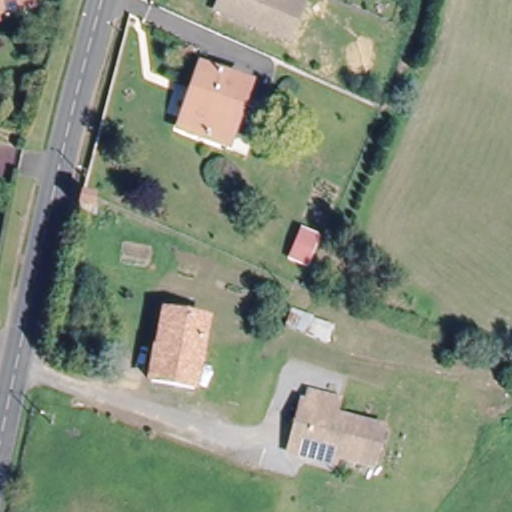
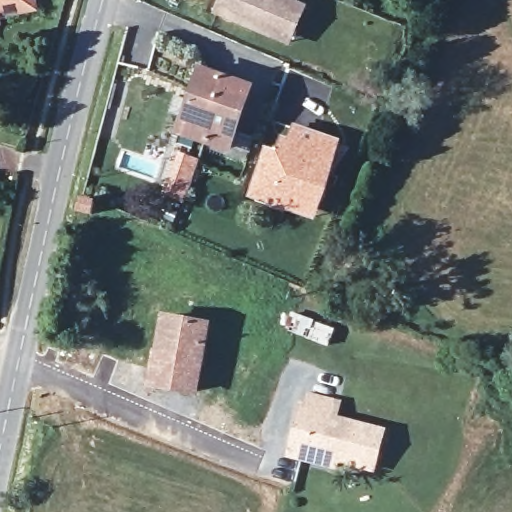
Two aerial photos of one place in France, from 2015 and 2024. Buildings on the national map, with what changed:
unchanged [(0,13),(0,0),(34,0),(35,6),(0,13)]
unchanged [(227,0),(283,0),(306,10),(293,41),(258,26),(256,31),(220,15),(227,0)]
unchanged [(229,148),(179,129),(201,68),(252,86),(229,148)]
new [(264,145),(276,148),(281,134),(287,136),(293,122),(342,138),(328,183),(314,220),(246,197),(264,145)]
new [(169,145),(200,158),(183,202),(155,191),(169,145)]
unchanged [(195,390),(151,382),(158,349),(164,316),(174,318),(208,325),(195,390)]
unchanged [(282,457),(296,410),(298,410),(302,393),(333,402),(329,418),(378,433),(367,471),(331,461),(328,471),(282,457)]

